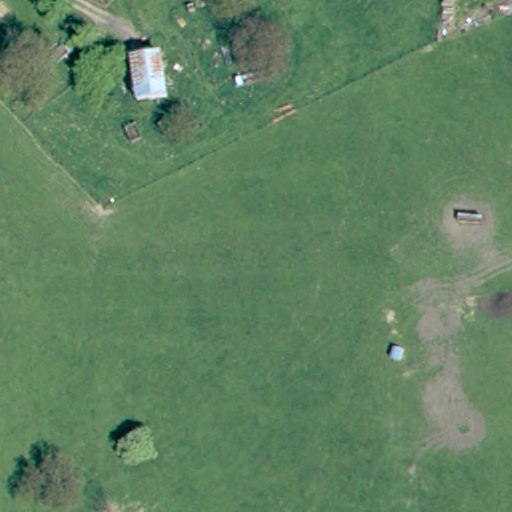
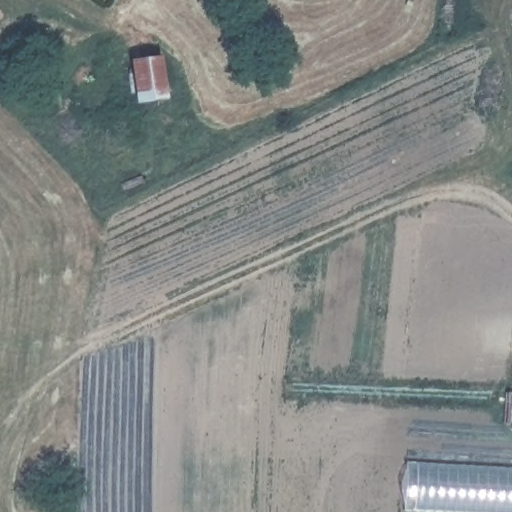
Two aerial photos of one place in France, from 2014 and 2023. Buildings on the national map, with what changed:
unchanged [(159,63),(162,101),(130,103),(128,64),(159,63)]
new [(511,422),(512,392),(512,393),(512,423),(511,422)]
new [(409,464),(512,470),(512,512),(407,512),(409,464)]

